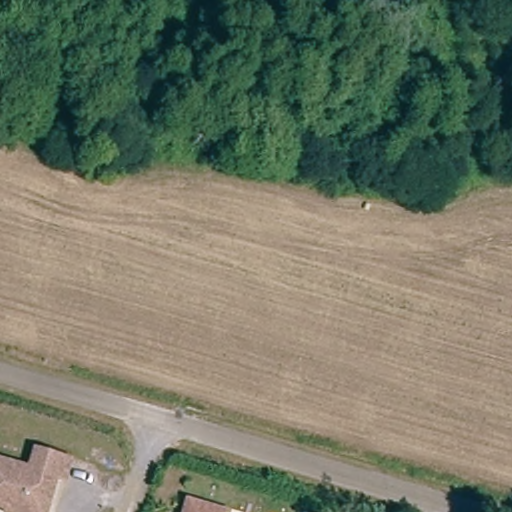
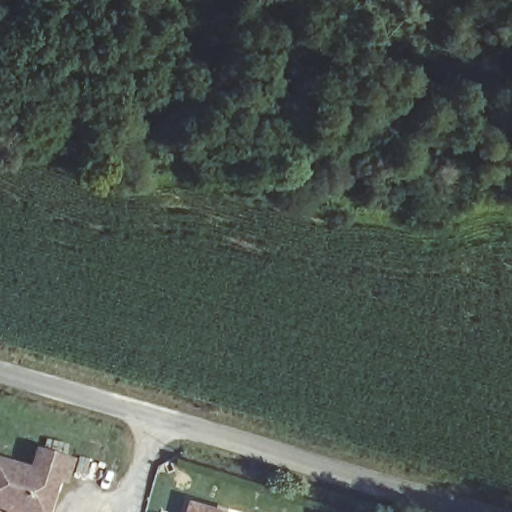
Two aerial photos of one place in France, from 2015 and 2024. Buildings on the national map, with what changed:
unchanged [(17,510),(0,504),(0,463),(3,465),(29,473),(36,450),(73,462),(64,487),(60,486),(51,512),(16,512),(17,510)]
unchanged [(209,512),(188,512),(189,507),(209,512)]

